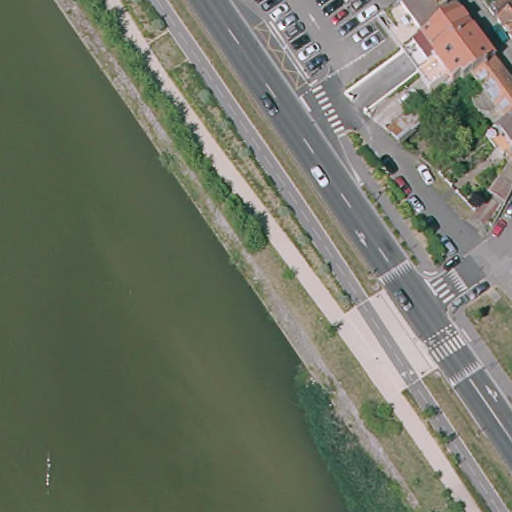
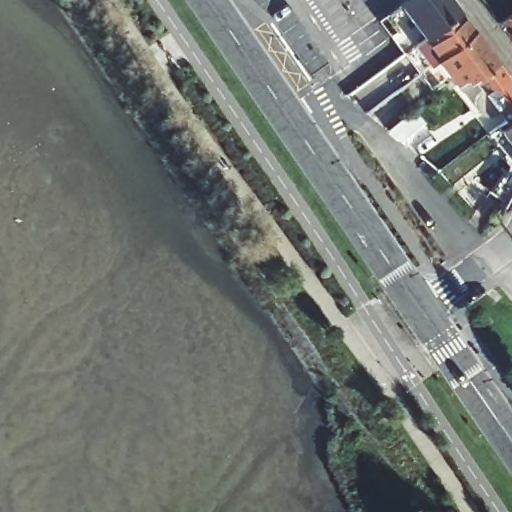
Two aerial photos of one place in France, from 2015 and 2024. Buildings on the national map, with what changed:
unchanged [(407,0),(451,0),(459,11),(424,36),(401,6),(407,0)]
unchanged [(499,0),(506,9),(512,4),(512,41),(488,9),(499,0)]
unchanged [(424,36),(459,11),(473,30),(469,33),(444,52),(431,63),(429,64),(419,50),(423,46),(419,40),(424,36)]
unchanged [(496,62),(474,78),(473,76),(466,81),(463,78),(454,84),(453,82),(439,64),(444,60),(448,58),(444,52),(469,33),(473,30),(496,62)]
unchanged [(487,96),(474,78),(496,62),(512,84),(512,114),(504,120),(493,103),(486,108),(481,101),(487,96)]
unchanged [(389,124),(412,107),(422,122),(398,139),(384,127),(389,124)]
unchanged [(483,196),(509,143),(497,126),(504,120),(512,114),(512,193),(505,207),(483,196)]

